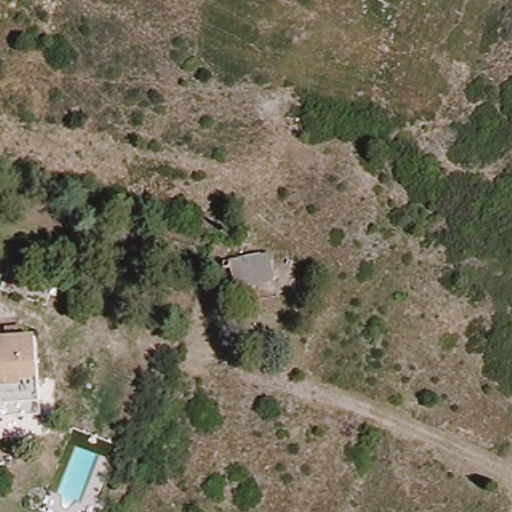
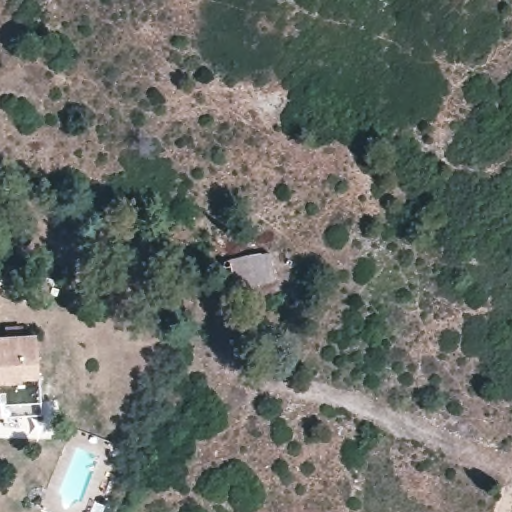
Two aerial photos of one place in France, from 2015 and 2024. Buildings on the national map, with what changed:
unchanged [(274,253),(278,282),(239,289),(235,259),(274,253)]
unchanged [(9,266),(40,276),(31,300),(2,289),(9,266)]
unchanged [(30,392),(0,394),(0,338),(26,336),(30,392)]

